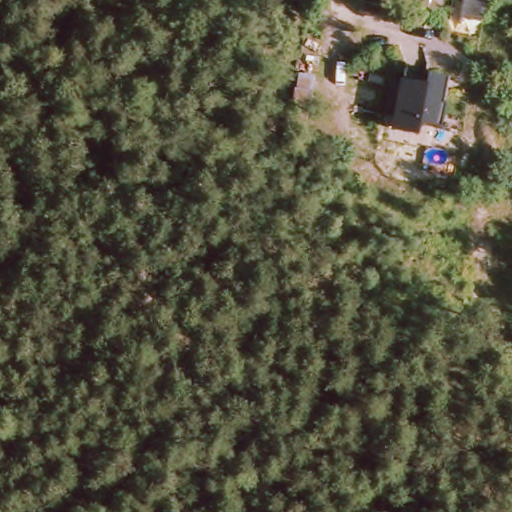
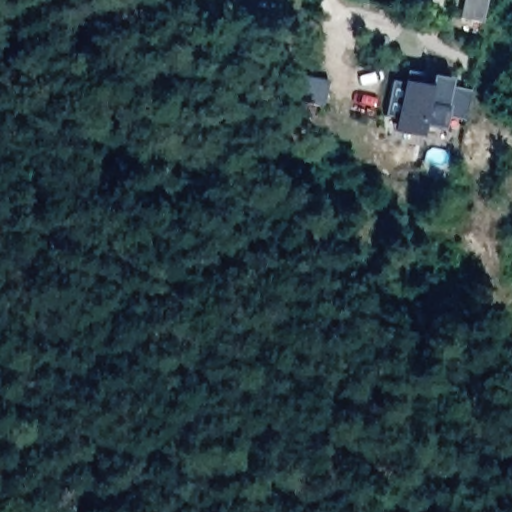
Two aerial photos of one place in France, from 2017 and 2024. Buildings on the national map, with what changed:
unchanged [(424,14),(402,10),(400,13),(385,10),(387,0),(426,0),(424,14)]
unchanged [(460,21),(464,0),(485,0),(480,26),(460,21)]
unchanged [(389,80),(401,83),(407,72),(429,76),(449,80),(444,106),(447,106),(442,130),(423,126),(420,137),(392,131),(394,120),(382,117),(389,80)]

